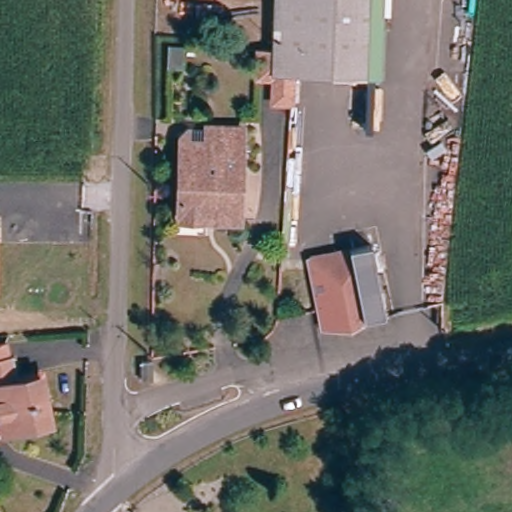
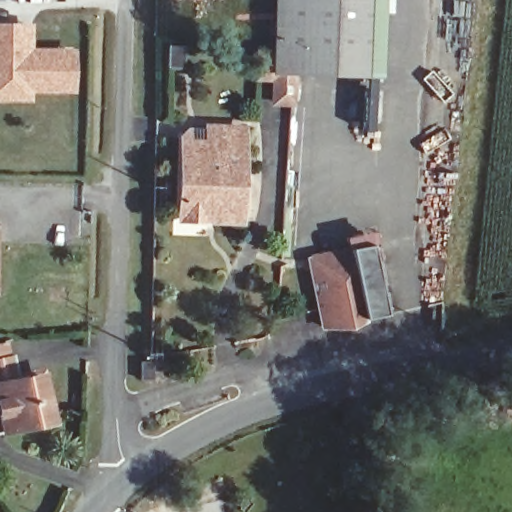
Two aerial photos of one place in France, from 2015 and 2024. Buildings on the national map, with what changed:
unchanged [(270,100),(270,72),(254,71),(255,49),(271,50),(274,0),(366,0),(363,76),(290,73),(288,104),(271,103),(270,100)]
new [(0,103),(0,24),(32,24),(33,48),(75,48),(75,95),(32,94),(31,103),(0,103)]
unchanged [(202,221),(175,218),(176,161),(177,140),(199,141),(210,142),(210,135),(245,139),(240,216),(240,225),(202,221)]
unchanged [(387,319),(325,329),(313,272),(311,259),(352,252),(355,265),(376,262),(387,319)]
unchanged [(55,424),(0,436),(0,344),(10,342),(16,377),(45,373),(55,424)]

